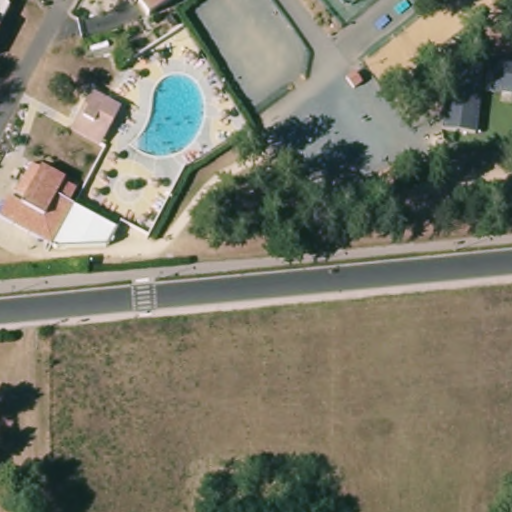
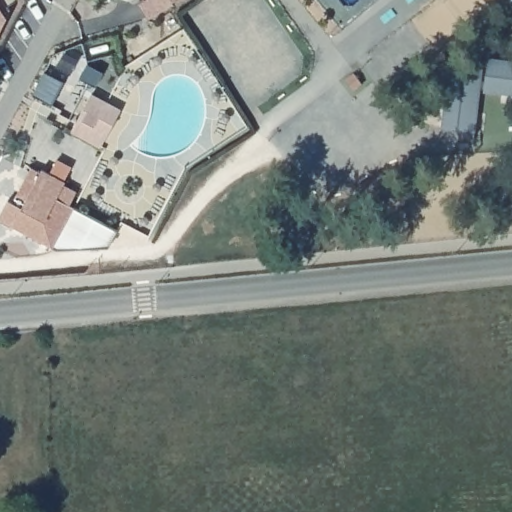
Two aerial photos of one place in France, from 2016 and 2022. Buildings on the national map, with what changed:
unchanged [(152,13),(144,0),(172,0),(152,13)]
unchanged [(7,7),(0,21),(0,4),(7,7)]
unchanged [(487,59),(512,61),(512,94),(484,90),(487,59)]
unchanged [(441,134),(447,78),(478,82),(473,135),(441,134)]
unchanged [(109,97),(111,139),(77,140),(76,99),(109,97)]
unchanged [(85,253),(57,255),(47,243),(0,220),(0,215),(9,195),(19,199),(24,190),(19,185),(27,165),(76,190),(70,201),(87,208),(84,219),(99,226),(85,253)]

